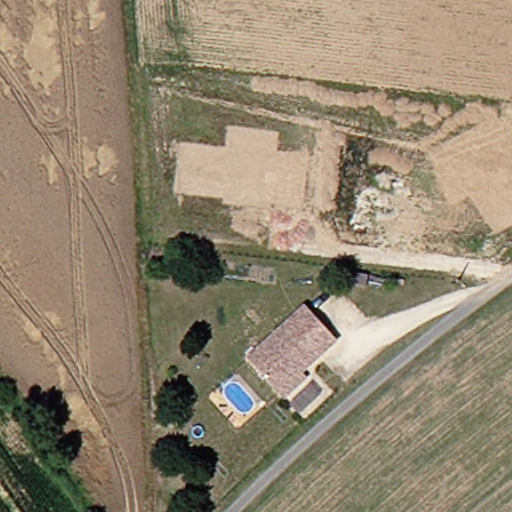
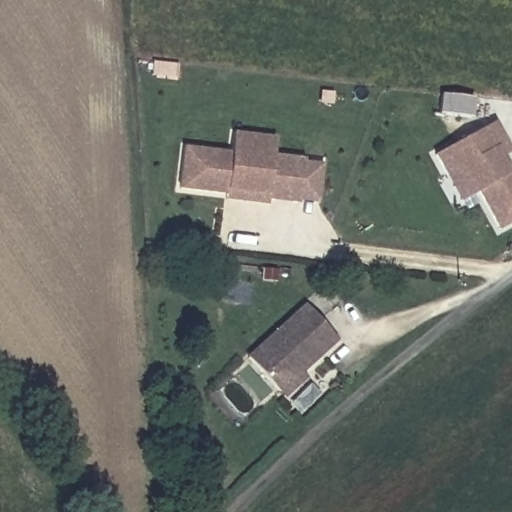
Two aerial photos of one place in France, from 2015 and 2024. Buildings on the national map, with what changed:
new [(479,191),(459,202),(434,155),(497,123),(512,152),(512,153),(505,158),(512,172),(512,222),(497,229),(479,191)]
new [(266,202),(266,204),(225,202),(226,196),(178,190),(184,147),(232,151),(234,133),(275,138),(273,155),(304,159),(298,203),(266,202)]
unchanged [(384,274),(383,285),(368,284),(369,272),(384,274)]
unchanged [(280,397),(276,392),(245,359),(301,305),(333,339),(298,372),(302,376),(280,397)]

